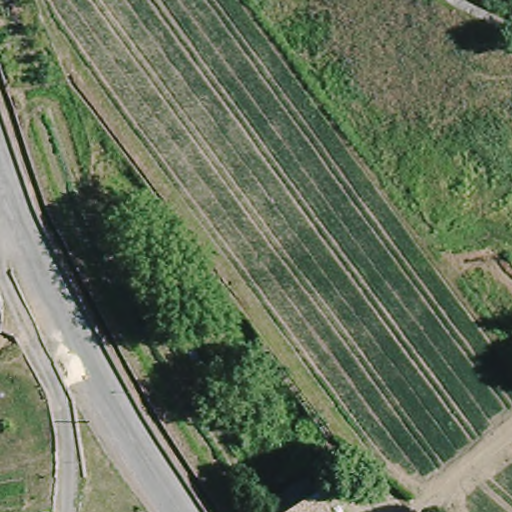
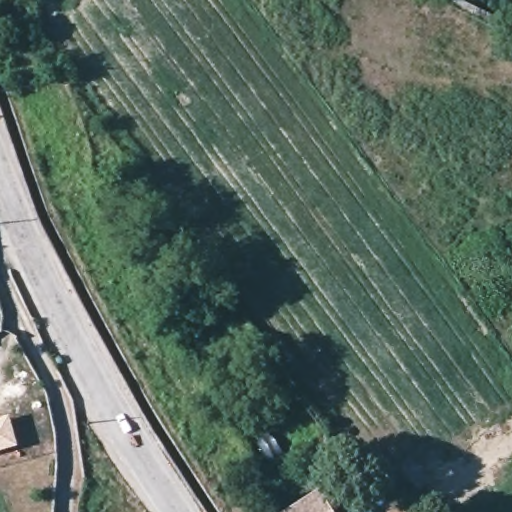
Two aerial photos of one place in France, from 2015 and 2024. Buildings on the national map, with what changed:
new [(8,416),(17,447),(0,451),(0,418),(8,416)]
unchanged [(316,481),(327,495),(338,512),(283,512),(277,503),(303,488),(316,481)]

